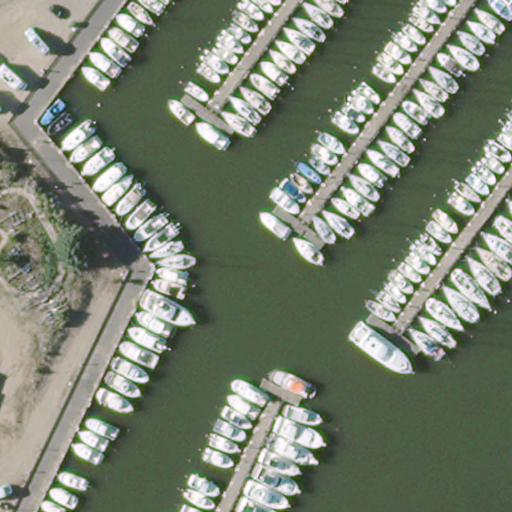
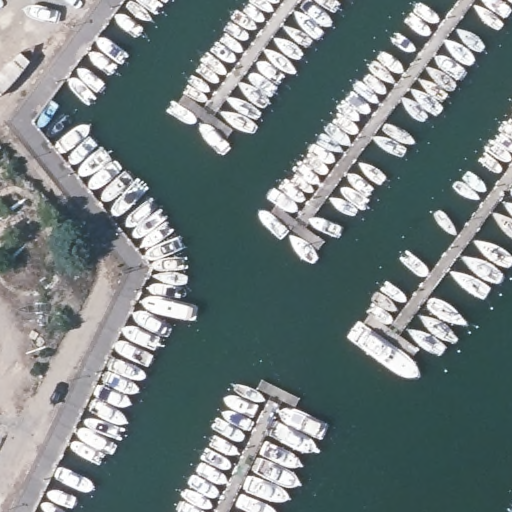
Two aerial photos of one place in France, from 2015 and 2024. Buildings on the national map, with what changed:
[]

